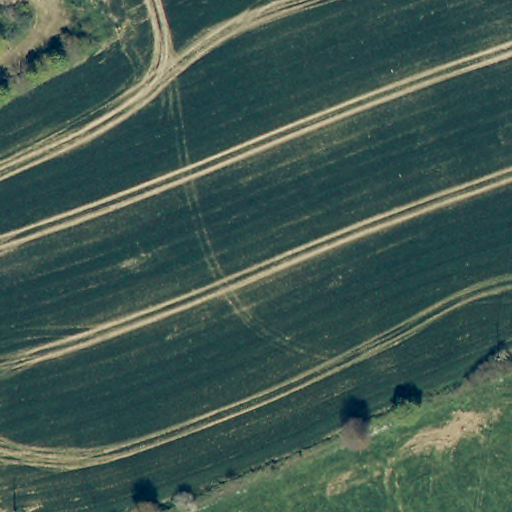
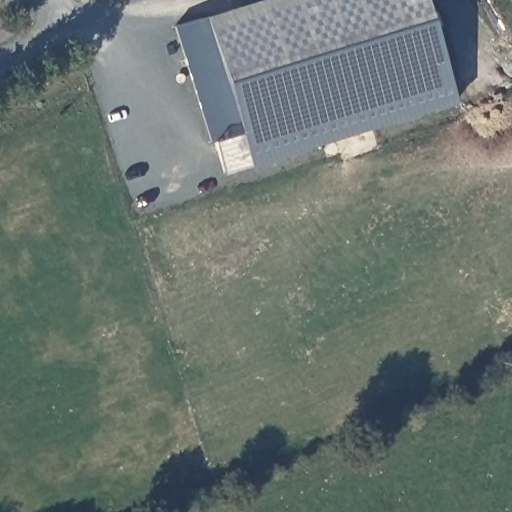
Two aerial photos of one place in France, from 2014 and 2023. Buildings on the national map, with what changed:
new [(223,175),(174,25),(205,15),(256,0),(424,0),(457,102),(223,175)]

